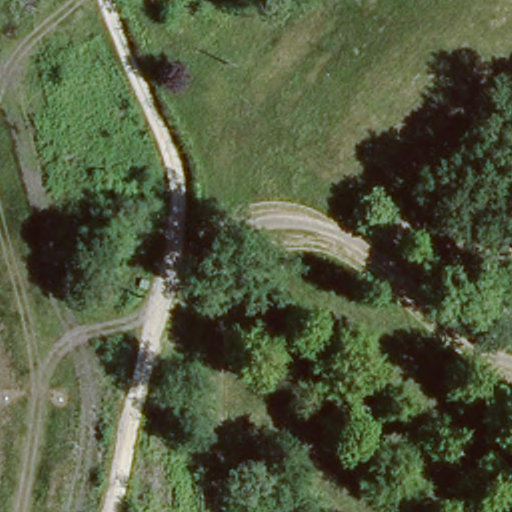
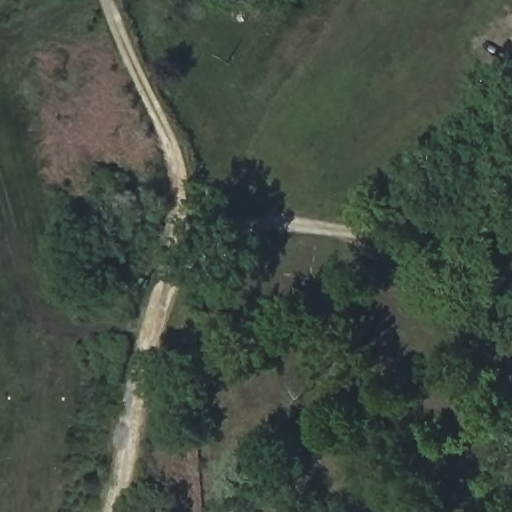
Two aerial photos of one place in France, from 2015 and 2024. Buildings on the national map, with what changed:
unchanged [(74,226),(92,207),(112,227),(94,244),(74,226)]

